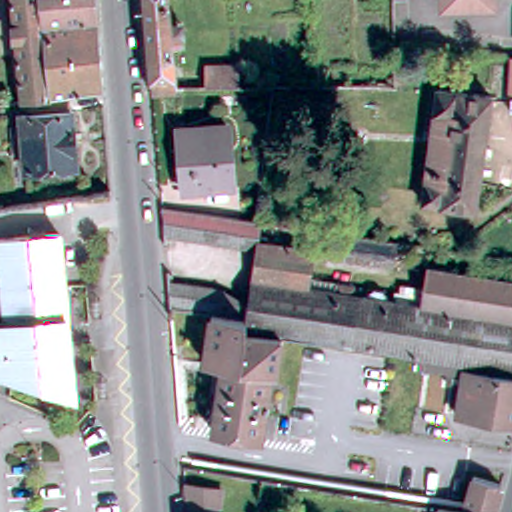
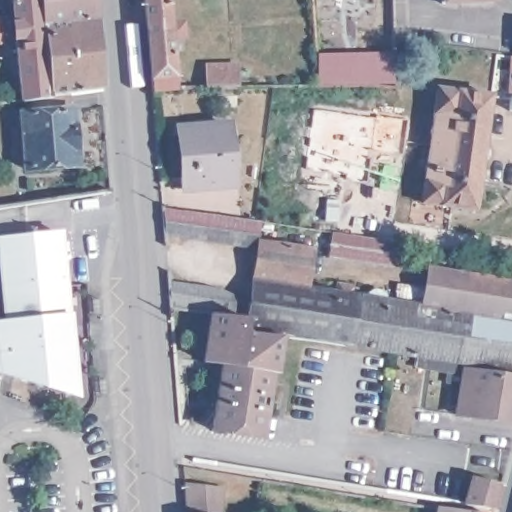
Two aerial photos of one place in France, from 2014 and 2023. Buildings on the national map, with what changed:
unchanged [(44,19),(51,94),(43,95),(33,96),(23,97),(13,0),(43,0),(44,19)]
unchanged [(43,0),(95,0),(96,14),(44,19),(43,0)]
unchanged [(145,0),(170,0),(178,90),(153,91),(145,0)]
unchanged [(492,3),(441,4),(441,0),(492,0),(492,3)]
unchanged [(102,86),(70,91),(51,94),(44,19),(96,14),(102,86)]
new [(3,43),(0,43),(0,19),(1,19),(3,43)]
new [(395,52),(397,87),(318,87),(316,54),(395,52)]
unchanged [(239,67),(240,89),(219,89),(219,67),(239,67)]
unchanged [(43,95),(51,94),(70,91),(71,106),(74,161),(25,167),(21,110),(33,110),(33,96),(43,95)]
unchanged [(474,210),(422,202),(437,91),(491,96),(474,210)]
unchanged [(509,107),(511,91),(512,91),(512,108),(509,107)]
unchanged [(181,130),(228,125),(233,186),(186,190),(181,130)]
unchanged [(170,302),(168,276),(185,280),(198,281),(212,284),(225,287),(237,293),(249,300),(257,245),(243,244),(231,241),(216,240),(206,237),(193,236),(178,234),(164,231),(161,201),(183,204),(197,205),(210,207),(221,209),(234,211),(247,212),(256,214),(261,215),(259,232),(315,240),(306,283),(332,288),(334,278),(353,281),(351,291),(365,293),(366,289),(373,285),(381,286),(387,293),(387,296),(424,302),(512,316),(512,366),(464,359),(418,352),(284,331),(282,341),(278,368),(274,368),(223,359),(207,356),(213,308),(208,308),(195,306),(181,304),(170,302)]
unchanged [(0,371),(0,317),(0,321),(11,320),(3,237),(34,234),(34,225),(51,230),(52,232),(63,231),(77,372),(79,395),(63,390),(0,371)]
unchanged [(328,256),(333,230),(371,235),(378,235),(382,236),(399,239),(394,265),(328,256)]
unchanged [(429,262),(512,275),(512,316),(424,302),(429,262)]
unchanged [(464,359),(463,365),(512,373),(512,418),(494,415),(454,410),(456,402),(449,401),(452,380),(446,379),(448,366),(416,361),(418,352),(464,359)]
unchanged [(274,368),(263,433),(213,425),(223,359),(274,368)]
unchanged [(494,505),(466,500),(464,500),(473,471),(501,480),(494,505)]
unchanged [(213,491),(213,506),(221,508),(220,512),(187,512),(184,485),(213,491)]
unchanged [(487,512),(434,512),(436,504),(487,512)]

